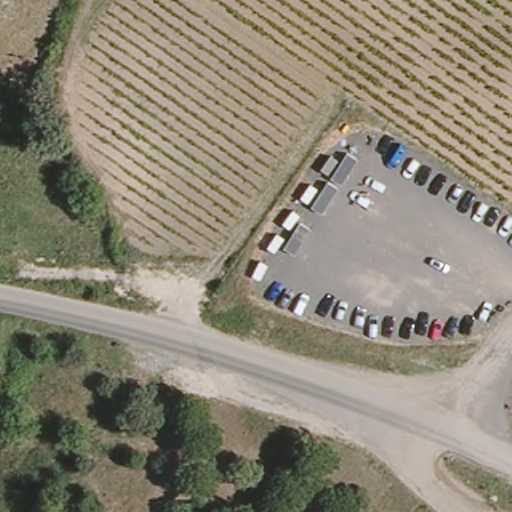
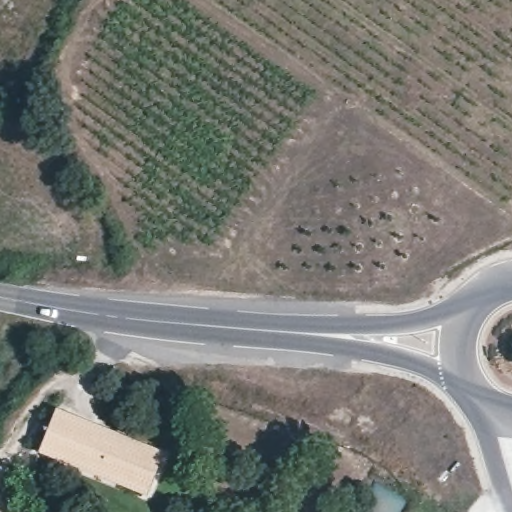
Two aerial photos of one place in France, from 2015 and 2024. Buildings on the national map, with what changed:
new [(40,453),(58,410),(165,452),(147,497),(40,453)]

